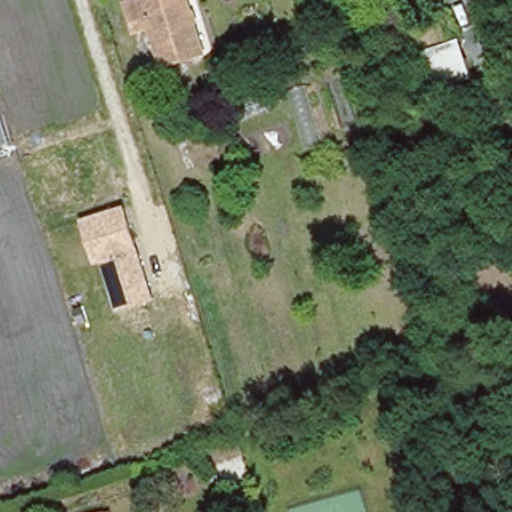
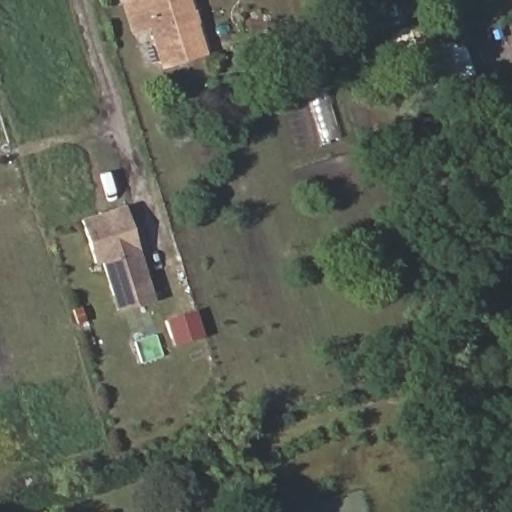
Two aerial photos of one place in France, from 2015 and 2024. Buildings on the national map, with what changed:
unchanged [(157,60),(145,21),(131,25),(122,0),(186,0),(200,46),(157,60)]
unchanged [(434,80),(425,45),(417,47),(408,16),(455,5),(472,70),(434,80)]
unchanged [(155,300),(117,311),(103,263),(94,265),(80,218),(126,205),(155,300)]

